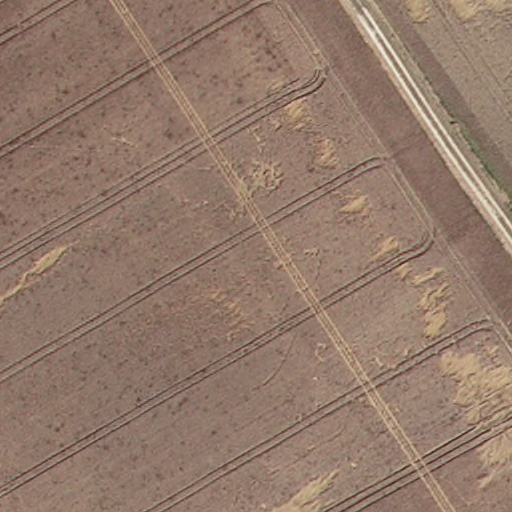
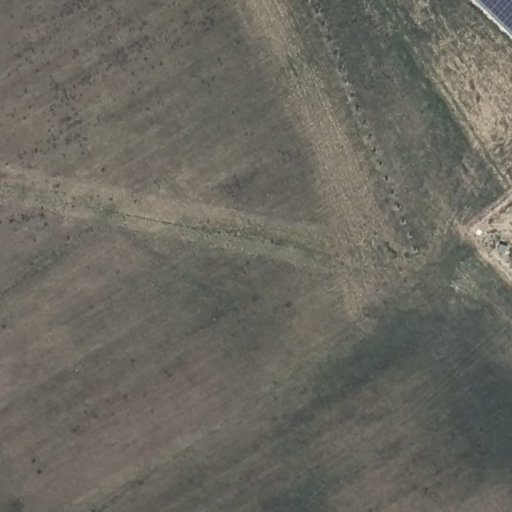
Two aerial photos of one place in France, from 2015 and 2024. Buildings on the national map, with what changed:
new [(477,0),(512,0),(512,34),(477,0)]

